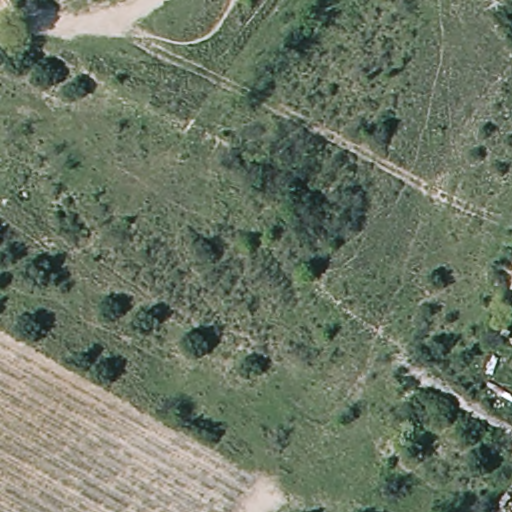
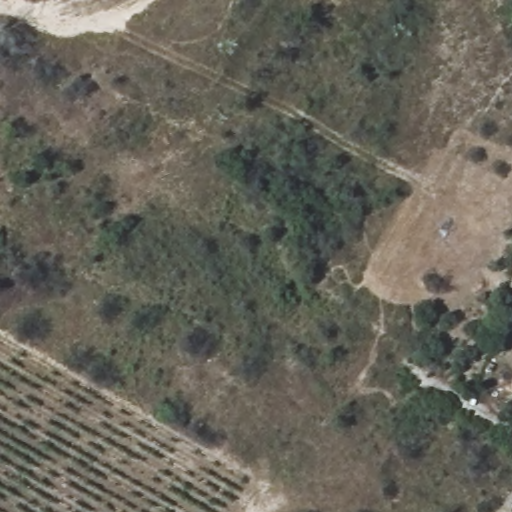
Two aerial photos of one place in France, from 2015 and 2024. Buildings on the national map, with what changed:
unchanged [(512,281),(512,301),(506,299),(512,281)]

